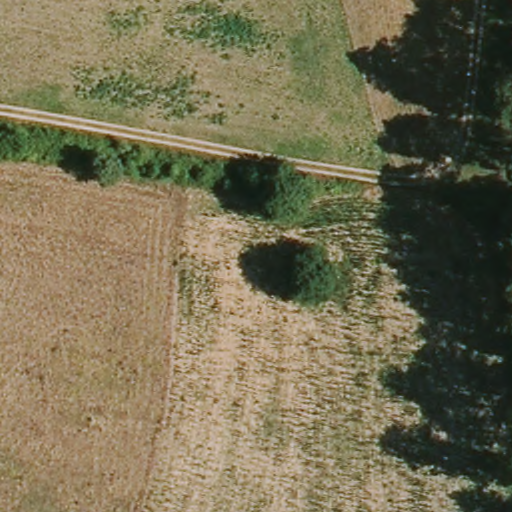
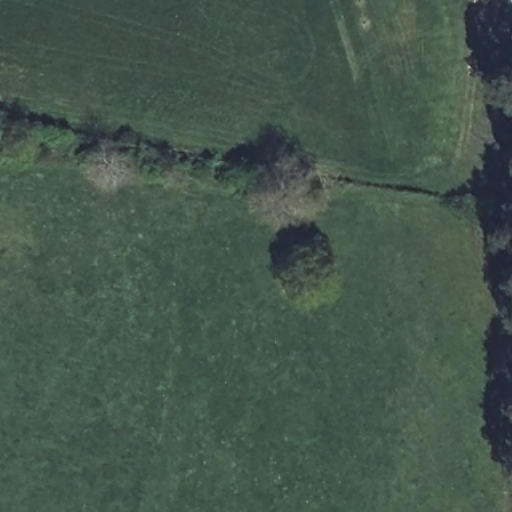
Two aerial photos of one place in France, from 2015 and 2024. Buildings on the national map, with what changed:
[]

